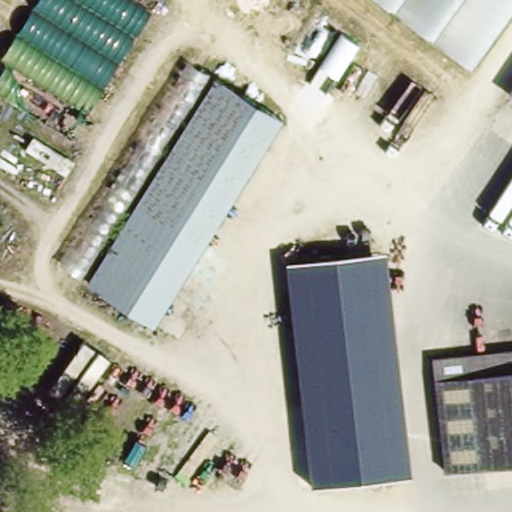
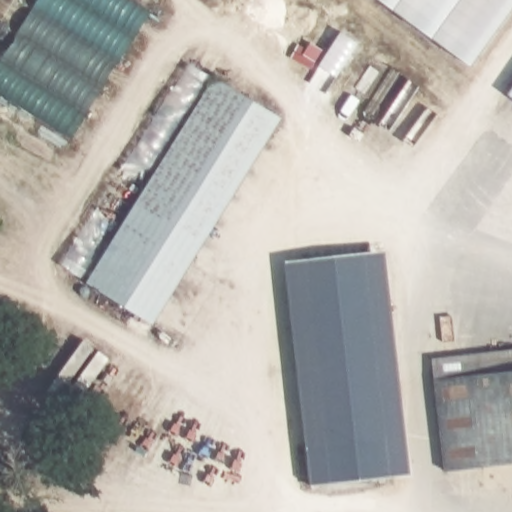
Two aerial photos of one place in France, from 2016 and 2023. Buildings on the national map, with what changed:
unchanged [(0,54),(33,0),(135,0),(148,8),(70,136),(0,89),(0,54)]
unchanged [(372,0),(512,0),(512,2),(463,69),(372,0)]
unchanged [(58,264),(183,57),(217,73),(87,281),(58,264)]
unchanged [(156,326),(87,281),(217,73),(287,118),(156,326)]
unchanged [(512,88),(512,99),(507,96),(512,88)]
unchanged [(328,454),(287,282),(366,265),(405,432),(410,456),(386,461),(332,473),(328,454)]
unchanged [(440,424),(427,371),(512,350),(512,465),(453,479),(440,424)]

